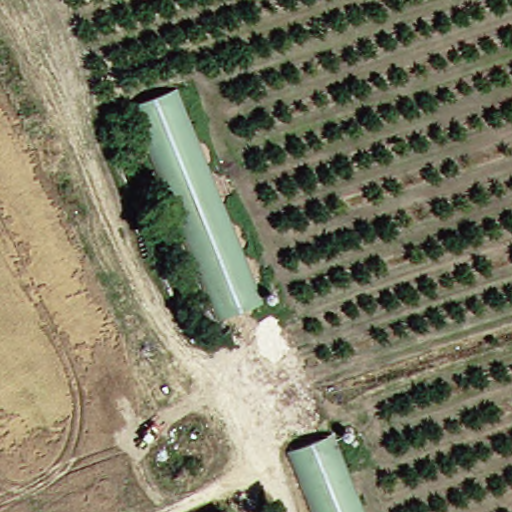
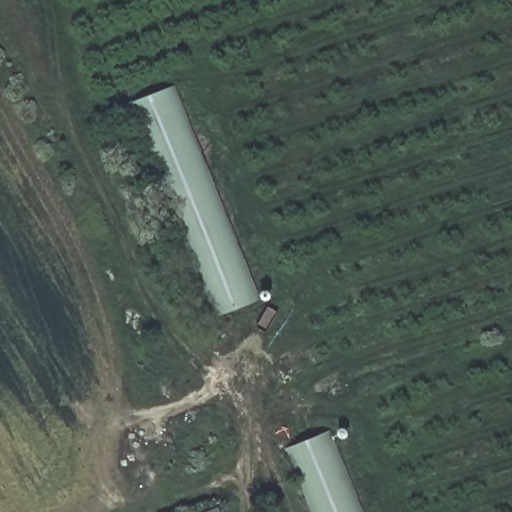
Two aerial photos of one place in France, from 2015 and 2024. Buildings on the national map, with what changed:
unchanged [(182,87),(269,300),(229,316),(144,103),(182,87)]
unchanged [(337,433),(370,512),(326,512),(301,448),(337,433)]
unchanged [(228,512),(179,512),(220,495),(228,512)]

